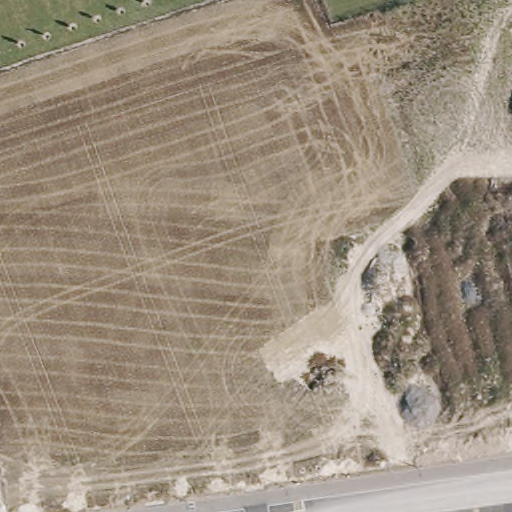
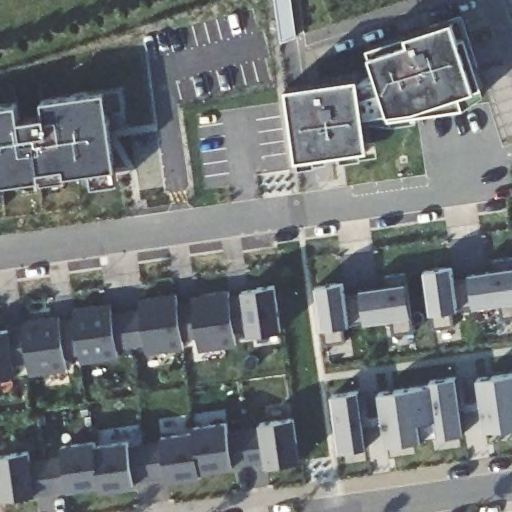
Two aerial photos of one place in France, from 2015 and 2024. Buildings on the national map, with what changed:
new [(297,37),(281,42),(275,0),(292,0),(297,37)]
new [(288,86),(358,76),(358,80),(378,75),(369,49),(461,19),(485,91),(465,105),(417,111),(415,121),(386,124),(364,119),(367,139),(376,138),(378,155),(342,158),(340,149),(326,151),(327,161),(300,165),(288,86)]
new [(83,189),(81,174),(0,186),(0,107),(17,105),(19,120),(44,116),(42,101),(121,90),(124,110),(108,113),(116,169),(118,184),(92,188),(83,189)]
new [(72,175),(73,183),(58,185),(57,177),(72,175)]
new [(45,179),(46,187),(31,190),(30,181),(45,179)]
new [(0,201),(0,186),(1,185),(3,200),(0,201)]
new [(452,267),(453,280),(470,278),(470,272),(495,269),(492,260),(512,257),(512,316),(501,317),(499,301),(450,308),(453,325),(433,327),(425,270),(452,267)]
new [(336,283),(338,297),(388,290),(386,277),(405,275),(413,332),(393,335),(390,317),(342,324),(345,340),(325,343),(317,286),(336,283)]
new [(248,335),(247,327),(234,329),(237,345),(200,350),(198,336),(182,338),(184,347),(147,353),(145,345),(117,348),(119,357),(82,362),(81,353),(65,356),(68,370),(30,375),(28,361),(15,363),(17,375),(0,377),(0,330),(24,327),(23,320),(60,314),(60,320),(76,318),(75,307),(110,302),(112,311),(142,307),(140,299),(177,293),(178,303),(193,300),(192,295),(230,290),(230,296),(242,295),(242,290),(276,285),(282,331),(248,335)]
new [(512,374),(512,424),(485,428),(478,379),(512,374)]
new [(432,386),(432,382),(456,378),(463,431),(387,442),(379,392),(432,386)]
new [(360,392),(367,446),(342,450),(333,395),(360,392)]
new [(265,465),(265,461),(200,471),(201,477),(169,482),(168,476),(133,481),(135,486),(100,491),(100,486),(0,499),(0,455),(30,451),(32,460),(63,455),(62,445),(97,440),(97,445),(129,440),(130,446),(162,441),(162,435),(194,430),(193,425),(227,420),(229,432),(260,427),(260,422),(296,419),(302,460),(265,465)]

